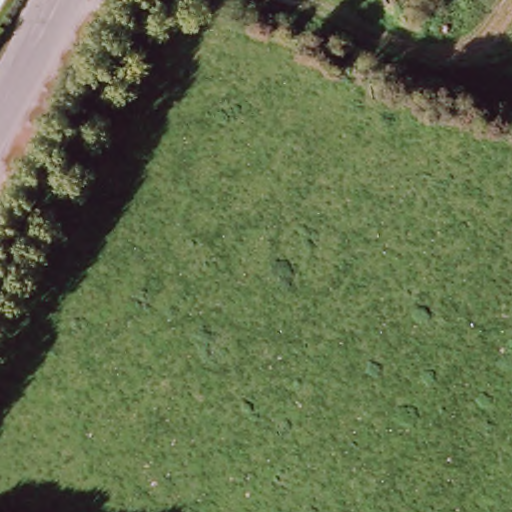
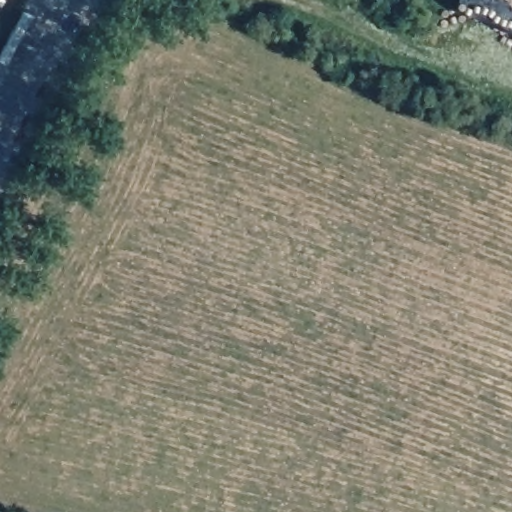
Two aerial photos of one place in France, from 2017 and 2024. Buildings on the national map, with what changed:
unchanged [(6,0),(0,11),(0,0),(6,0)]

